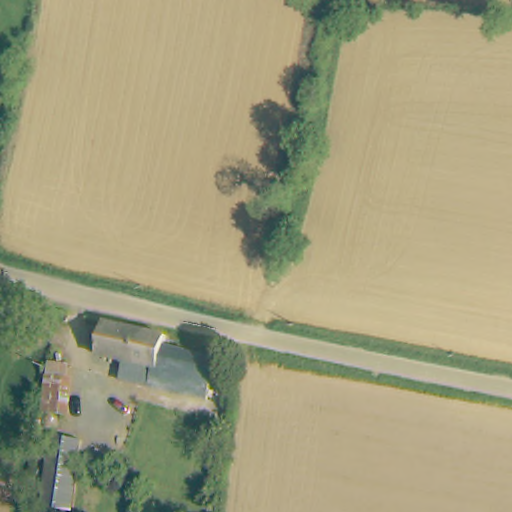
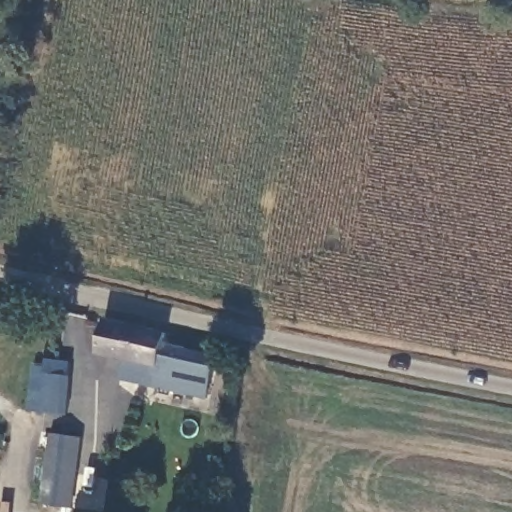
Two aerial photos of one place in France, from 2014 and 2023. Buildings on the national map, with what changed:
unchanged [(98,365),(105,328),(172,343),(169,354),(195,359),(194,372),(173,368),(168,395),(146,391),(147,384),(119,380),(120,369),(98,365)]
unchanged [(219,352),(209,402),(168,395),(173,368),(194,372),(195,359),(169,354),(172,343),(219,352)]
unchanged [(67,375),(73,375),(69,413),(43,411),(48,359),(69,360),(67,375)]
new [(74,509),(41,504),(51,435),(83,438),(74,509)]

